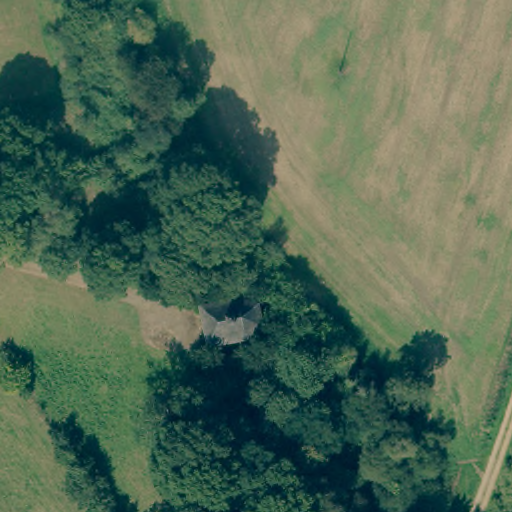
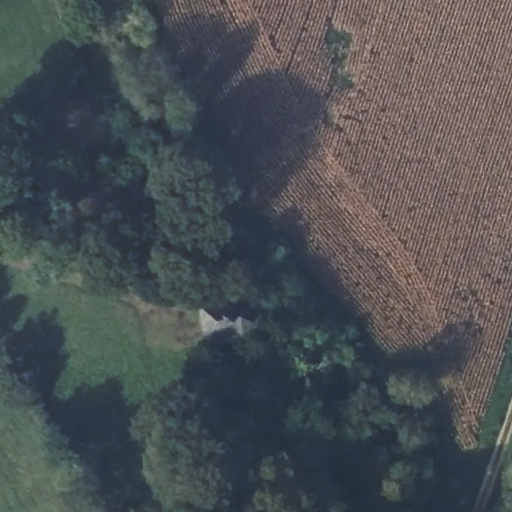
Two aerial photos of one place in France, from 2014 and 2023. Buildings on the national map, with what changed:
unchanged [(196,309),(226,301),(255,307),(258,325),(242,342),(206,353),(196,309)]

